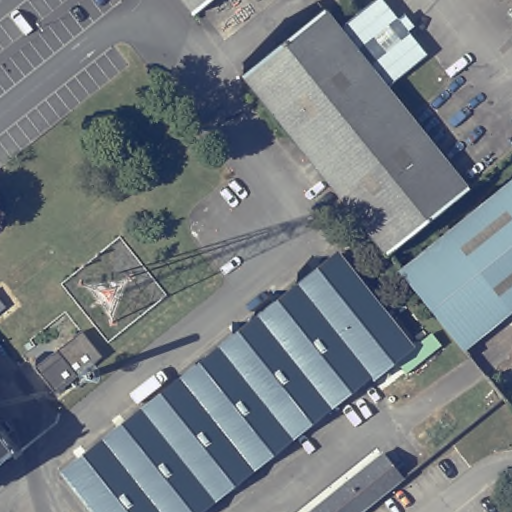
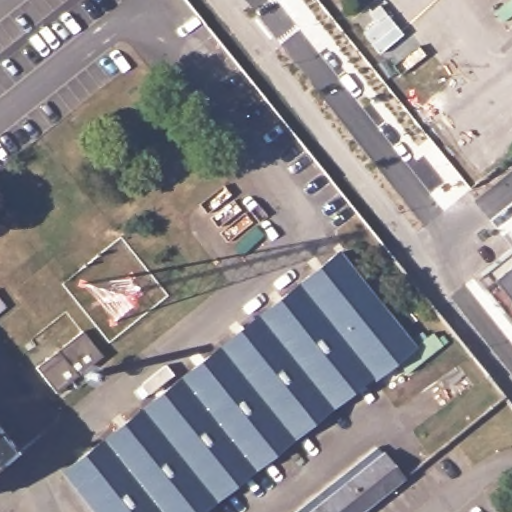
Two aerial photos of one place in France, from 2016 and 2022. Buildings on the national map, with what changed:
demolished [(212,0),(194,15),(182,0),(212,0)]
demolished [(387,87),(340,28),(376,0),(381,0),(426,56),(387,87)]
demolished [(242,77),(323,11),(466,191),(386,256),(242,77)]
demolished [(401,273),(512,185),(512,318),(467,355),(401,273)]
new [(470,278),(512,245),(512,330),(470,278)]
unchanged [(63,475),(340,254),(417,350),(378,381),(375,377),(205,512),(93,512),(63,475)]
unchanged [(42,373),(63,357),(59,352),(84,331),(104,356),(74,381),(75,383),(70,387),(68,385),(58,393),(42,373)]
unchanged [(15,457),(0,469),(0,439),(5,446),(15,457)]
unchanged [(383,455),(408,485),(375,512),(311,512),(383,455)]

